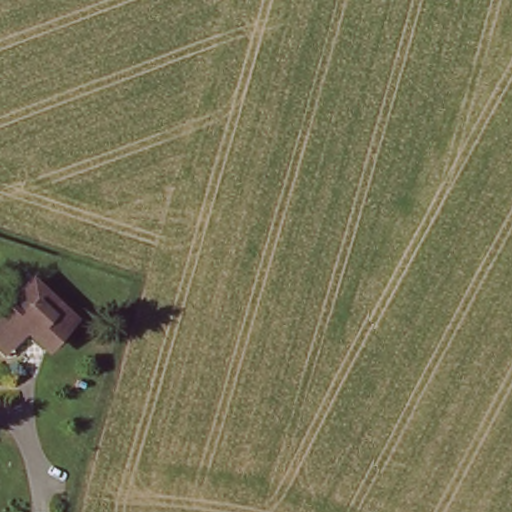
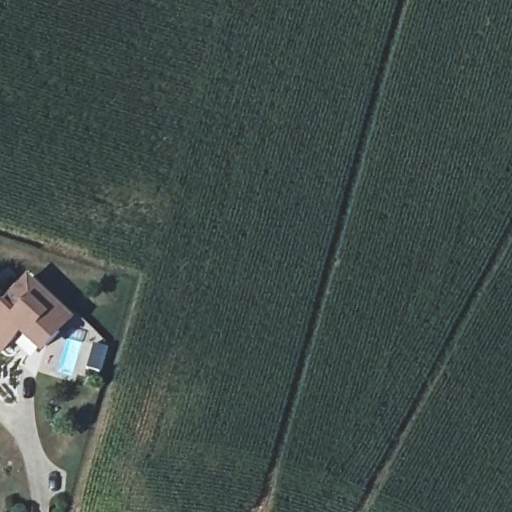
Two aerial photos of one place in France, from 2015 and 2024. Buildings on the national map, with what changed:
unchanged [(7,340),(0,346),(0,306),(28,276),(70,315),(48,340),(45,342),(42,340),(23,322),(7,340)]

